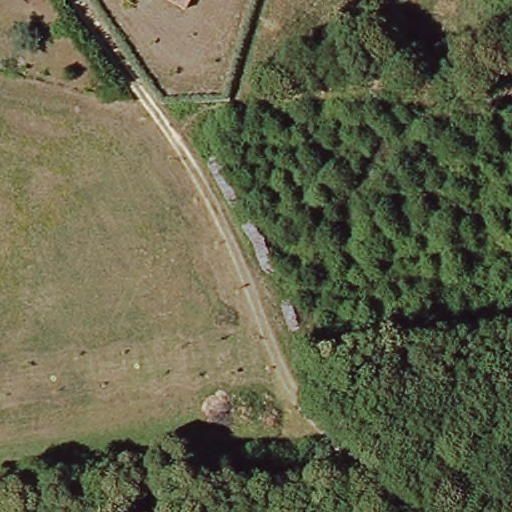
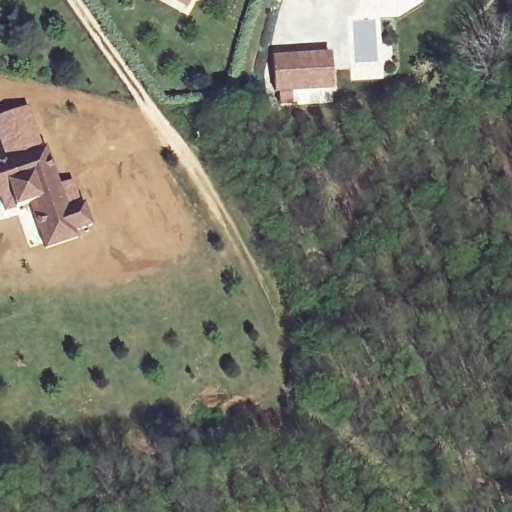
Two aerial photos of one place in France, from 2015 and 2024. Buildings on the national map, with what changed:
unchanged [(169,0),(193,0),(187,10),(169,0)]
unchanged [(402,0),(407,0),(407,1),(402,0)]
new [(332,53),(335,91),(275,93),(273,54),(332,53)]
new [(10,158),(0,128),(0,116),(31,106),(45,147),(50,146),(70,209),(87,203),(95,225),(78,230),(80,237),(48,248),(33,202),(19,207),(14,192),(0,197),(0,162),(10,158)]

